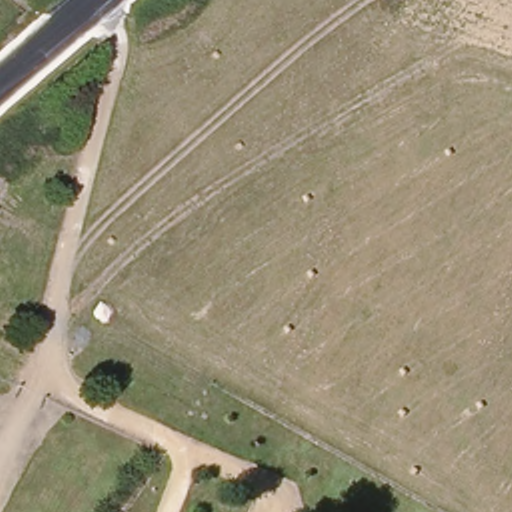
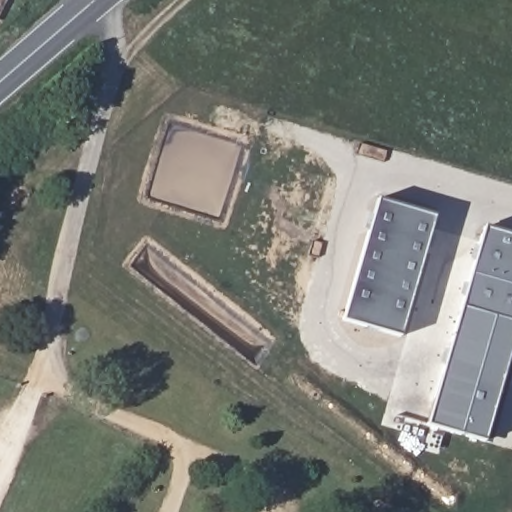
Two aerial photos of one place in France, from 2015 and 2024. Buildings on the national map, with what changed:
new [(399,338),(340,320),(376,199),(435,216),(399,338)]
new [(424,424),(483,227),(512,235),(512,344),(483,442),(424,424)]

